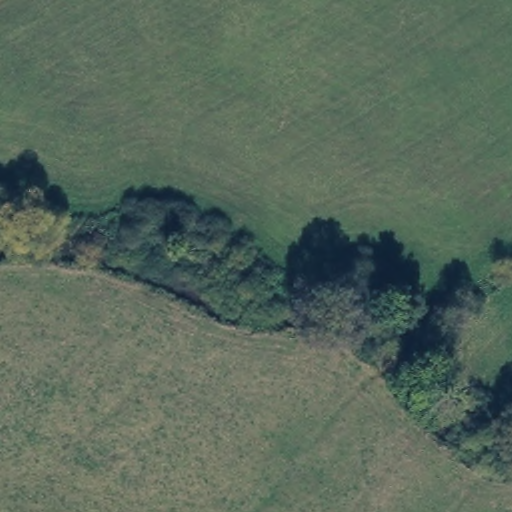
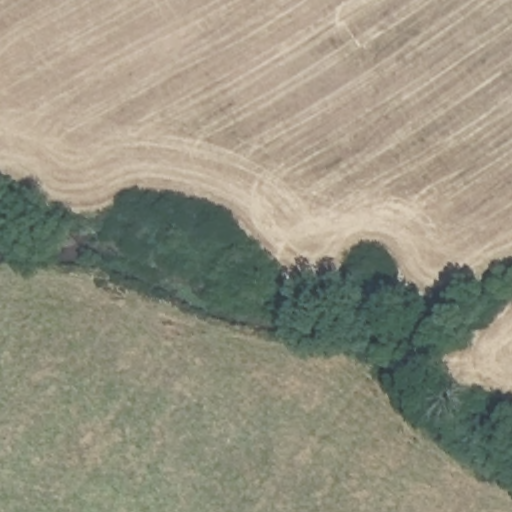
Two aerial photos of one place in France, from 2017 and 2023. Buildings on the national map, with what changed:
[]

